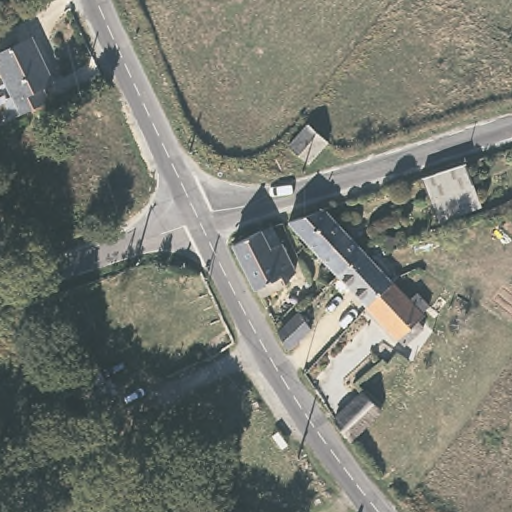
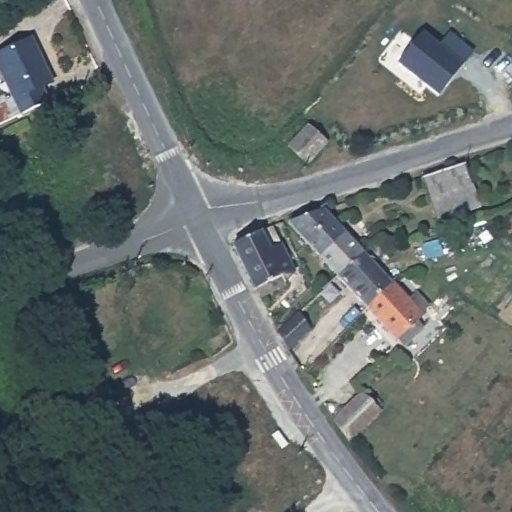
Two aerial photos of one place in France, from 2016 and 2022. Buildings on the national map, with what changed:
new [(422,32),(438,44),(448,33),(472,52),(439,96),(396,64),(422,32)]
unchanged [(58,78),(46,84),(53,99),(1,126),(0,123),(0,97),(13,90),(0,64),(0,56),(36,36),(58,78)]
unchanged [(331,137),(310,159),(291,141),(309,120),(331,137)]
unchanged [(482,197),(467,203),(467,208),(441,218),(424,174),(468,159),(482,197)]
unchanged [(291,222),(327,210),(368,252),(343,276),(291,222)]
unchanged [(260,295),(230,240),(259,228),(272,222),(280,239),(295,269),(283,285),(264,303),(260,295)]
unchanged [(371,306),(343,276),(368,252),(397,282),(371,306)]
unchanged [(409,346),(371,306),(397,282),(413,300),(421,296),(434,308),(430,312),(428,329),(409,346)]
unchanged [(308,330),(288,350),(277,333),(296,313),(308,330)]
unchanged [(382,411),(350,442),(334,421),(366,392),(382,411)]
unchanged [(292,442),(284,448),(262,420),(270,414),(292,442)]
unchanged [(88,466),(90,466),(91,466),(93,467),(94,468),(95,470),(95,471),(96,472),(96,474),(96,475),(96,476),(96,477),(95,478),(95,480),(87,483),(86,483),(85,483),(84,483),(83,482),(82,482),(81,481),(80,480),(80,479),(79,477),(78,476),(78,473),(78,472),(79,472),(79,471),(80,468),(81,468),(82,467),(83,467),(84,466),(85,466),(87,466),(88,466)]
unchanged [(144,510),(160,501),(168,512),(146,512),(144,510)]

